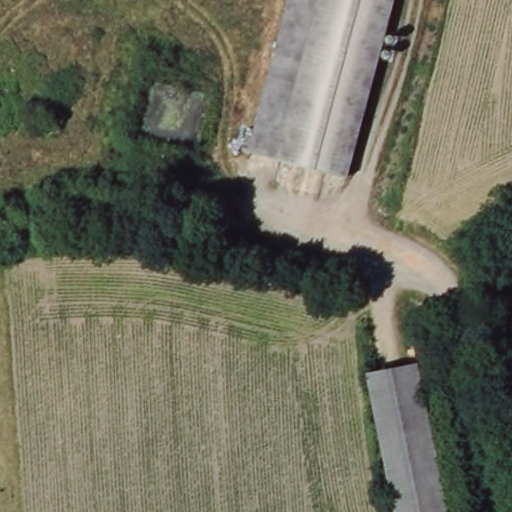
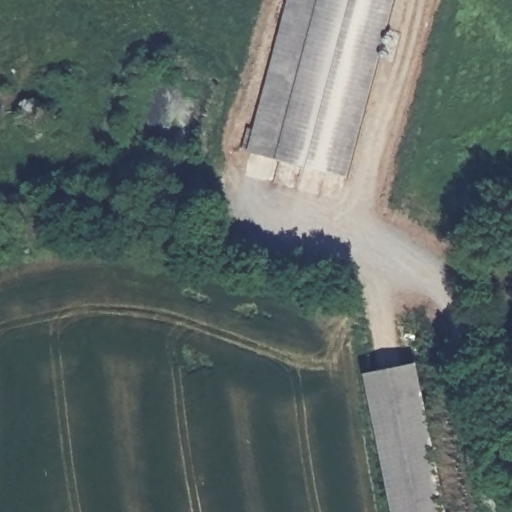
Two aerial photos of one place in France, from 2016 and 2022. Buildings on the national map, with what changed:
unchanged [(244,131),(250,134),(291,0),(395,0),(340,184),(273,163),(245,155),(237,152),(244,131)]
unchanged [(446,512),(394,512),(374,370),(425,364),(446,512)]

